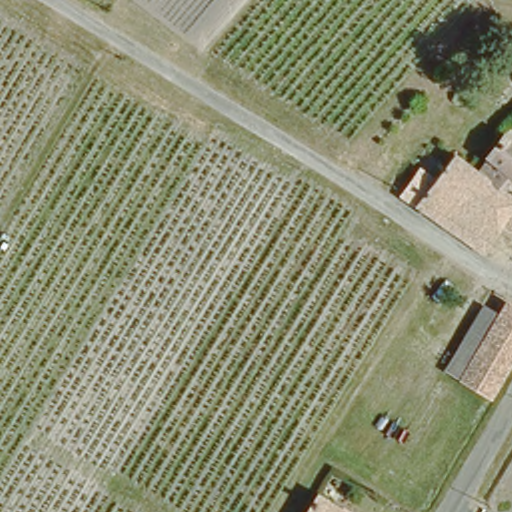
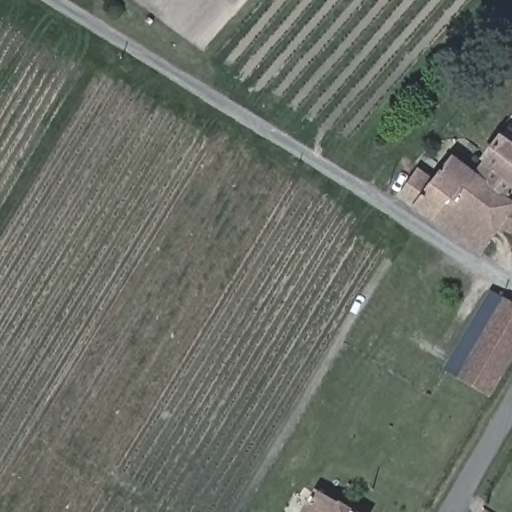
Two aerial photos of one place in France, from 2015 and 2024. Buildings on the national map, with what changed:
unchanged [(400,192),(420,168),(430,175),(451,148),(477,167),(486,156),(483,154),(503,129),(512,136),(512,229),(493,225),(475,247),(458,234),(400,192)]
unchanged [(451,352),(482,302),(495,309),(501,298),(512,305),(512,352),(488,392),(457,372),(455,375),(443,365),(451,352)]
unchanged [(344,512),(302,512),(313,495),(344,512)]

